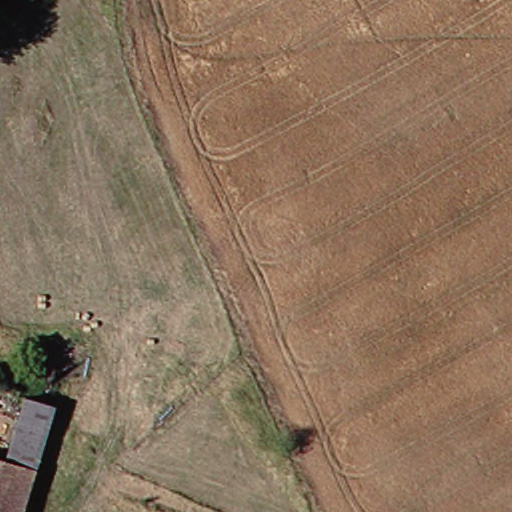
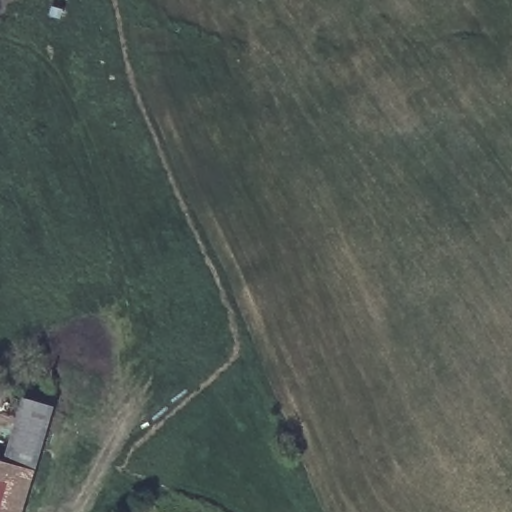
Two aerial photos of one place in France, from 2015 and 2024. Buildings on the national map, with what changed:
unchanged [(25,398),(54,406),(34,469),(6,461),(25,398)]
unchanged [(22,512),(0,512),(0,459),(6,461),(34,469),(22,512)]

